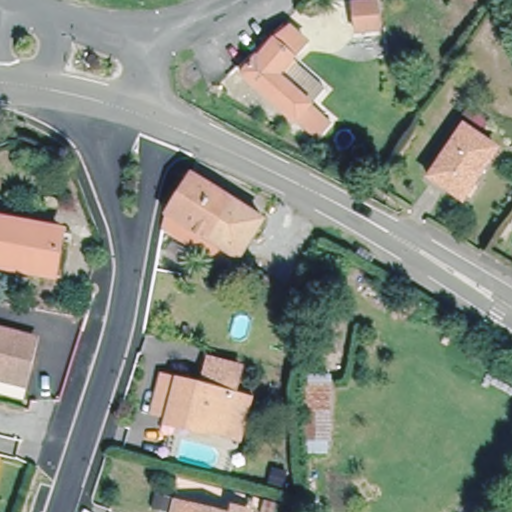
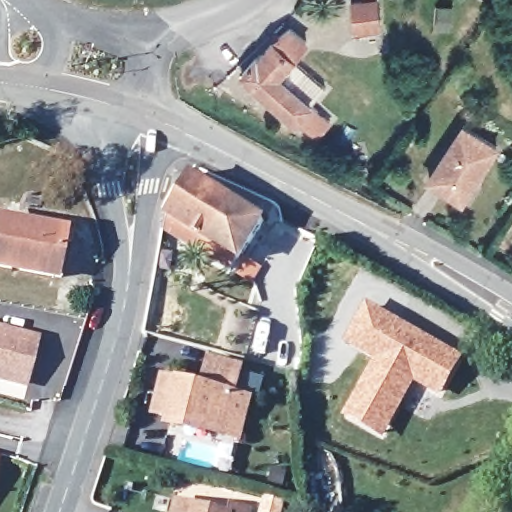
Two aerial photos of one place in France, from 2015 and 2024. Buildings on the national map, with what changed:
unchanged [(353,0),(378,0),(381,24),(356,27),(353,0)]
unchanged [(237,74),(252,58),(254,59),(269,41),(285,28),(302,43),(287,60),(321,89),(306,105),(325,122),(311,139),(237,74)]
unchanged [(430,178),(463,127),(497,150),(463,200),(430,178)]
unchanged [(168,216),(192,176),(264,222),(239,261),(238,260),(231,270),(210,257),(163,228),(168,216)]
unchanged [(0,267),(0,222),(65,234),(60,260),(56,278),(50,276),(0,267)]
demolished [(326,312),(301,304),(313,268),(339,277),(326,312)]
new [(347,415),(356,400),(361,391),(366,382),(373,371),(343,354),(348,345),(368,308),(459,360),(440,393),(413,377),(390,418),(381,434),(347,415)]
unchanged [(0,378),(0,331),(34,340),(23,384),(0,378)]
unchanged [(223,435),(169,421),(170,417),(155,413),(164,377),(202,388),(209,361),(241,369),(240,372),(233,397),(250,401),(240,440),(223,435)]
unchanged [(242,503),(260,508),(259,512),(183,512),(187,498),(240,512),(242,503)]

